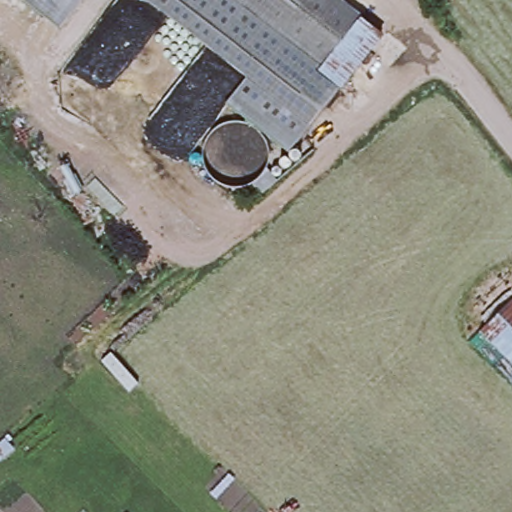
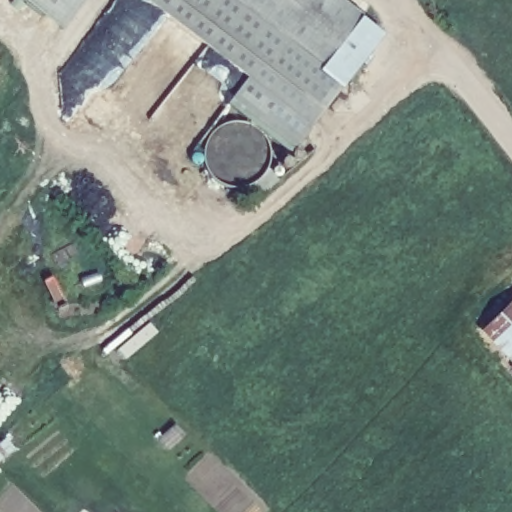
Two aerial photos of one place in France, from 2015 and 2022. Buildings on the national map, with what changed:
unchanged [(42,16),(22,0),(81,0),(58,29),(42,16)]
unchanged [(180,0),(251,71),(160,0),(180,0)]
unchanged [(344,82),(309,128),(251,71),(180,0),(239,0),(322,65),(344,82)]
unchanged [(322,65),(239,0),(349,0),(364,12),(322,65)]
unchanged [(386,29),(344,82),(322,65),(364,12),(386,29)]
unchanged [(251,71),(309,128),(293,148),(230,99),(251,71)]
unchanged [(512,305),(512,356),(487,330),(512,305)]

